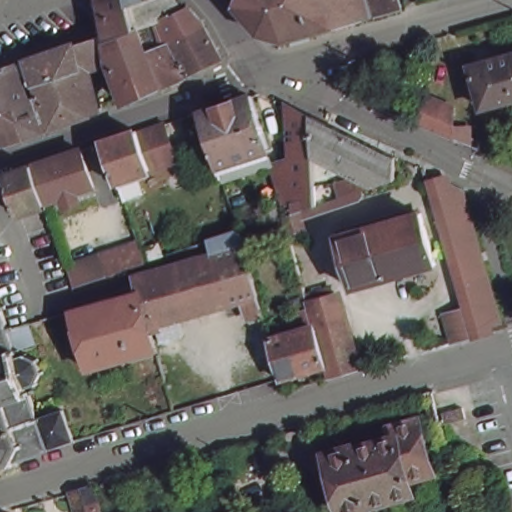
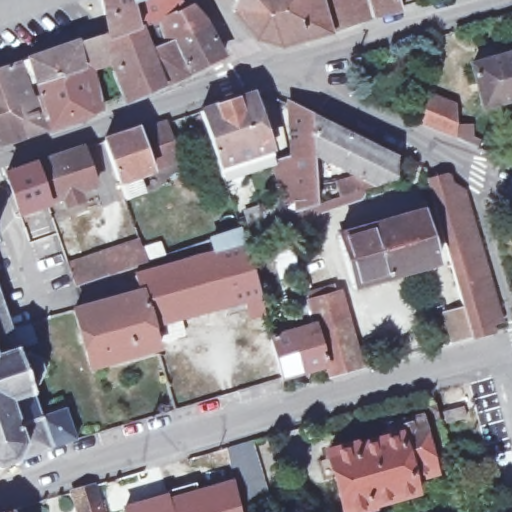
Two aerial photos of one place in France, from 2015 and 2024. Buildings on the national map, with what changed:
unchanged [(109,25),(100,0),(123,0),(132,18),(109,25)]
unchanged [(123,0),(181,0),(184,2),(202,19),(219,51),(185,67),(157,80),(132,18),(123,0)]
unchanged [(324,25),(282,36),(277,37),(271,36),(265,35),(250,31),(227,1),(228,0),(316,0),(324,25)]
unchanged [(342,20),(324,25),(316,0),(336,0),(342,20)]
unchanged [(393,6),(342,20),(336,0),(391,0),(393,6)]
unchanged [(84,108),(35,125),(19,130),(9,101),(0,104),(0,55),(10,51),(12,58),(22,55),(21,51),(70,36),(100,28),(109,25),(132,18),(157,80),(124,94),(110,64),(105,59),(108,100),(84,108)]
unchanged [(473,66),(512,57),(512,100),(484,107),(473,66)]
unchanged [(445,99),(445,122),(469,118),(479,122),(470,144),(410,118),(423,90),(445,99)]
unchanged [(265,150),(214,167),(207,149),(195,111),(249,94),(265,150)]
unchanged [(9,101),(19,130),(0,137),(0,104),(9,101)]
unchanged [(323,201),(312,205),(285,215),(272,169),(289,157),(286,105),(307,115),(310,154),(310,160),(311,175),(321,174),(323,201)]
unchanged [(195,111),(207,149),(172,158),(160,122),(195,111)]
unchanged [(389,151),(397,153),(396,175),(377,182),(345,168),(342,176),(325,168),(328,161),(310,154),(307,115),(389,151)]
unchanged [(160,122),(172,158),(147,167),(134,130),(160,122)]
unchanged [(135,171),(140,188),(119,194),(100,141),(134,130),(147,167),(135,171)]
unchanged [(35,163),(70,152),(83,148),(95,185),(82,189),(49,200),(35,163)]
unchanged [(49,200),(20,209),(7,172),(35,163),(49,200)]
unchanged [(440,311),(460,306),(423,178),(443,173),(489,329),(469,336),(449,341),(440,311)]
unchanged [(437,259),(350,282),(337,228),(422,205),(437,259)]
unchanged [(132,274),(213,246),(210,235),(235,227),(240,247),(254,294),(254,295),(245,296),(242,290),(175,309),(179,326),(157,333),(152,320),(147,322),(133,276),(132,274)]
unchanged [(65,257),(97,247),(100,246),(135,235),(143,257),(129,262),(105,270),(72,280),(65,257)]
unchanged [(147,322),(149,328),(153,341),(87,360),(73,303),(130,288),(129,277),(133,276),(147,322)]
unchanged [(305,303),(305,302),(304,299),(335,290),(357,363),(324,372),(320,359),(305,303)]
unchanged [(305,303),(320,359),(276,371),(264,330),(295,321),(290,305),(305,302),(305,303)]
unchanged [(1,312),(0,312),(0,307),(1,312)]
unchanged [(2,331),(7,329),(24,325),(30,349),(15,355),(9,356),(11,361),(17,360),(20,355),(22,356),(21,360),(29,364),(32,359),(34,361),(31,366),(32,373),(37,373),(37,377),(32,376),(29,384),(34,385),(33,388),(21,389),(22,393),(28,392),(29,397),(24,397),(30,418),(35,417),(36,420),(57,414),(67,444),(0,468),(0,327),(2,331)]
unchanged [(465,425),(445,430),(442,419),(462,414),(465,425)]
unchanged [(445,492),(379,512),(376,501),(350,509),(334,447),(359,441),(360,444),(402,432),(400,422),(425,416),(445,492)]
unchanged [(265,456),(235,463),(232,447),(260,439),(265,456)]
new [(194,482),(197,493),(232,484),(239,512),(173,512),(167,490),(194,482)]
unchanged [(73,512),(68,495),(88,489),(94,512),(73,512)]
unchanged [(8,512),(0,512),(0,508),(5,506),(7,508),(8,512)]

